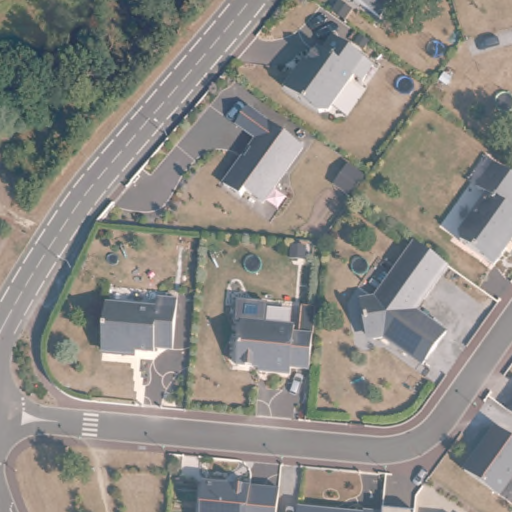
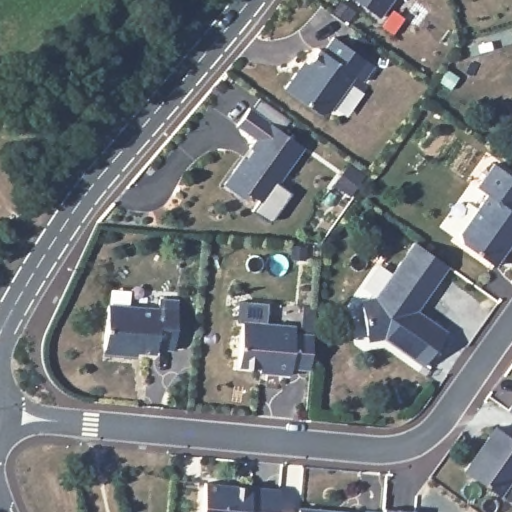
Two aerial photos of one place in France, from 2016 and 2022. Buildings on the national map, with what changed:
unchanged [(378,17),(355,0),(390,0),(378,17)]
unchanged [(373,67),(362,82),(354,77),(328,112),(318,114),(283,89),(296,71),(300,74),(318,50),(322,52),(333,37),(373,67)]
unchanged [(303,154),(262,210),(244,197),(240,203),(223,190),(243,163),(245,165),(252,156),(249,154),(255,145),(235,131),(248,114),(303,154)]
unchanged [(512,176),(512,246),(497,267),(464,244),(462,235),(490,196),(479,189),(497,166),(512,176)]
unchanged [(414,317),(444,339),(421,372),(382,343),(372,346),(364,341),(359,312),(364,306),(374,304),(414,249),(447,272),(414,317)]
unchanged [(105,307),(156,312),(157,302),(176,303),(172,353),(154,352),(153,357),(124,354),(118,358),(107,357),(103,352),(101,352),(105,307)]
unchanged [(289,372),(288,380),(257,377),(257,373),(235,371),(240,326),(293,331),(292,338),(310,340),(307,375),(289,372)]
unchanged [(509,407),(512,403),(512,409),(509,407)]
unchanged [(512,443),(512,473),(495,497),(461,472),(493,428),(512,443)]
unchanged [(280,512),(204,512),(206,492),(282,498),(280,512)]

